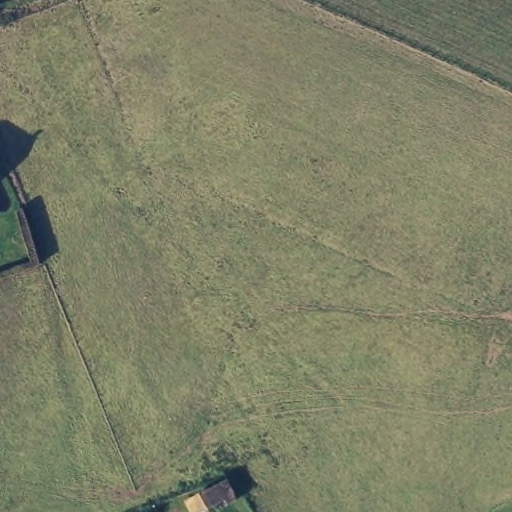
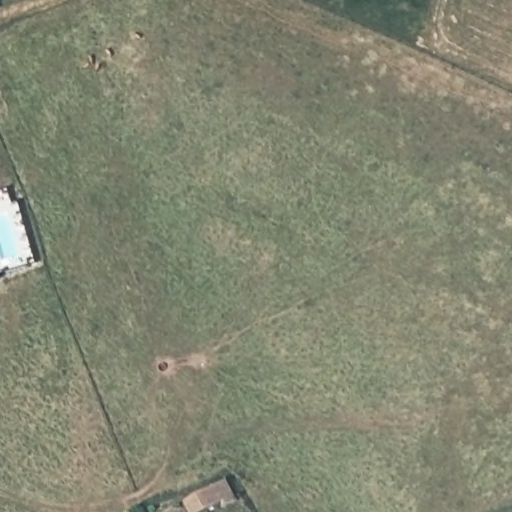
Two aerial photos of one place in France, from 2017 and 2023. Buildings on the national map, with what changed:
unchanged [(224,500),(201,512),(192,512),(186,502),(216,486),(224,500)]

